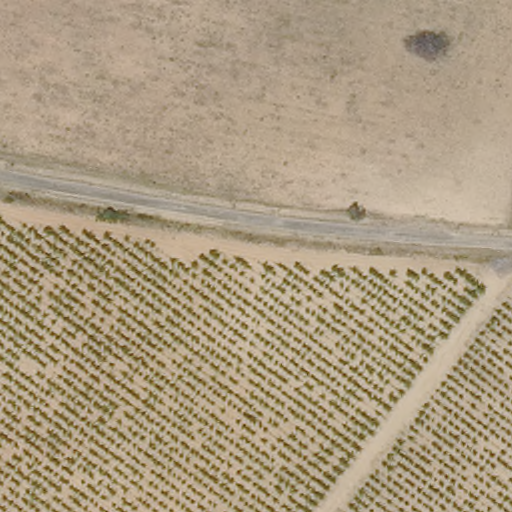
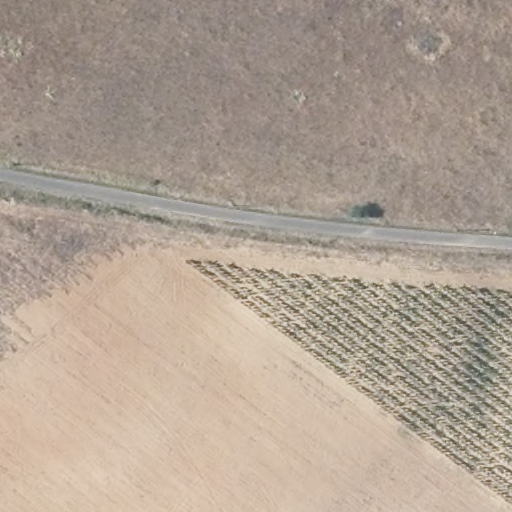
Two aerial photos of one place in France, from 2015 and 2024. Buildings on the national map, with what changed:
[]

